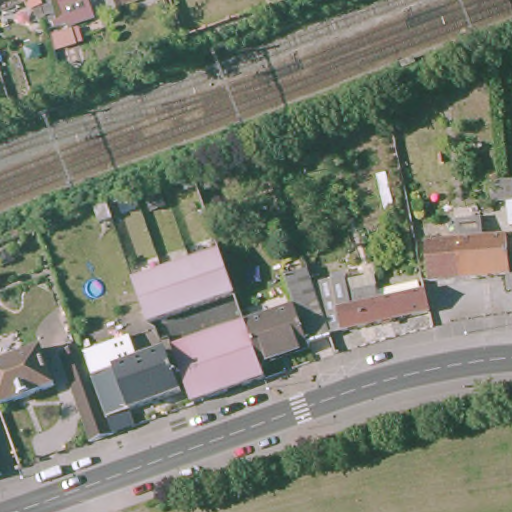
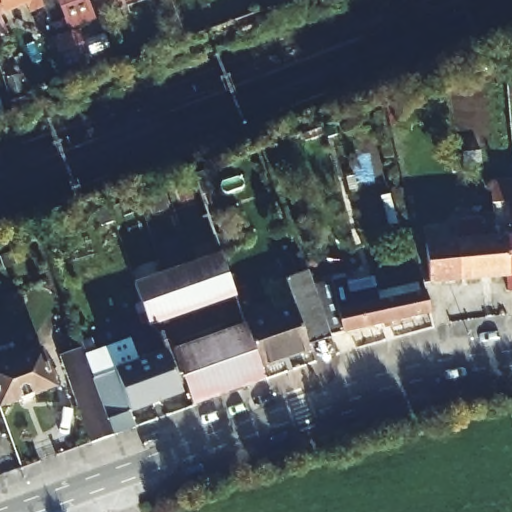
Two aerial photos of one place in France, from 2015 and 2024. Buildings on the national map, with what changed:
unchanged [(5,12),(0,3),(0,0),(21,0),(23,5),(5,12)]
unchanged [(36,20),(34,12),(37,11),(36,6),(32,7),(30,0),(43,0),(48,17),(36,20)]
unchanged [(61,0),(87,0),(92,14),(70,22),(61,0)]
unchanged [(55,31),(73,26),(82,55),(63,60),(55,31)]
unchanged [(507,225),(505,201),(489,202),(487,181),(512,179),(512,225),(507,225)]
unchanged [(104,212),(109,225),(98,229),(92,217),(104,212)]
unchanged [(478,219),(480,237),(512,235),(512,291),(507,291),(507,276),(425,282),(422,242),(453,240),(452,222),(478,219)]
unchanged [(235,297),(180,317),(163,274),(218,253),(235,297)]
unchanged [(309,285),(320,314),(327,335),(318,337),(320,341),(305,347),(307,349),(259,367),(243,324),(293,305),(282,277),(303,268),(309,285)]
unchanged [(368,271),(373,292),(376,301),(320,314),(309,285),(368,271)]
unchanged [(180,317),(152,327),(149,316),(147,316),(135,285),(163,274),(180,317)]
unchanged [(429,312),(327,335),(320,314),(376,301),(373,292),(416,282),(417,290),(423,289),(429,312)]
unchanged [(259,367),(264,379),(208,399),(190,406),(170,352),(188,345),(243,324),(259,367)]
unchanged [(90,442),(59,357),(80,350),(78,344),(85,342),(89,354),(99,351),(107,372),(165,352),(179,391),(105,418),(112,434),(90,442)]
unchanged [(46,391),(0,407),(0,365),(33,354),(46,391)]

